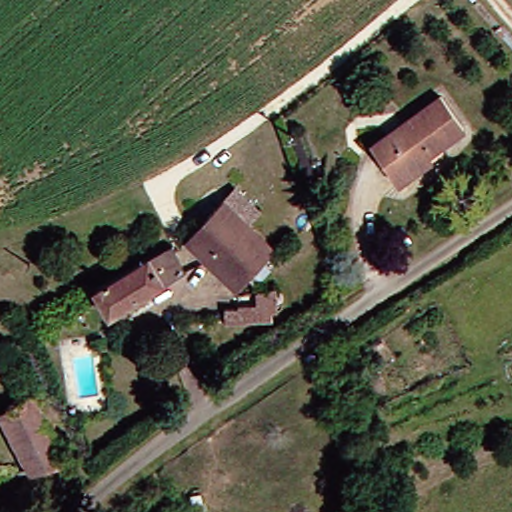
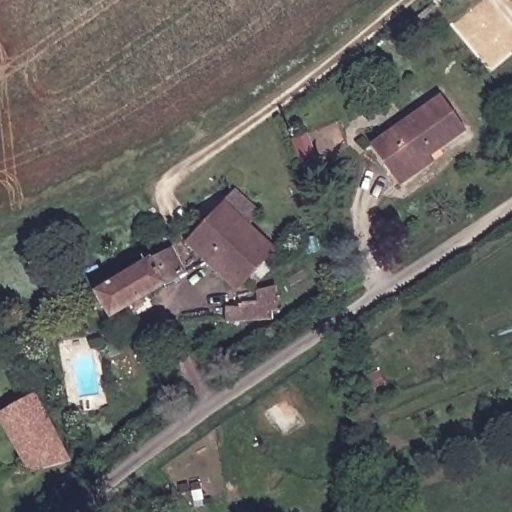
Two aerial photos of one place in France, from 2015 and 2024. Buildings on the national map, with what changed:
unchanged [(403,185),(397,174),(377,143),(450,95),(474,132),(436,158),(440,163),(403,185)]
unchanged [(215,207),(269,249),(240,289),(180,247),(215,207)]
unchanged [(160,252),(177,279),(105,318),(90,294),(160,252)]
unchanged [(282,294),(275,300),(280,308),(235,336),(227,324),(261,297),(257,289),(272,278),(282,294)]
unchanged [(0,422),(0,412),(33,398),(62,461),(25,476),(0,422)]

